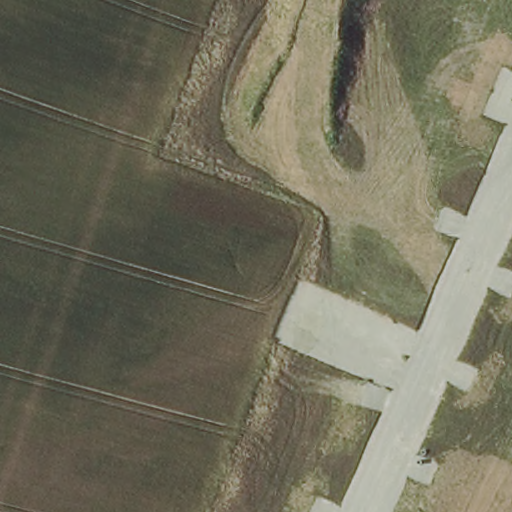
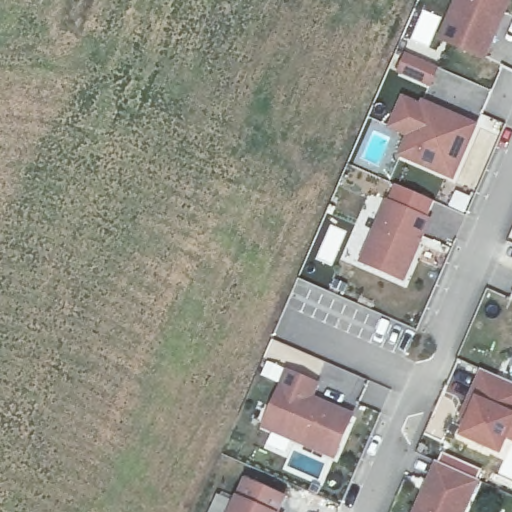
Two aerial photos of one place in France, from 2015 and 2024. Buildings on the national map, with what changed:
new [(491,47),(449,29),(461,0),(511,0),(491,47)]
new [(406,55),(436,69),(429,84),(400,70),(406,55)]
new [(419,103),(422,100),(479,124),(453,182),(397,157),(406,137),(386,130),(401,96),(419,103)]
new [(362,261),(388,202),(396,183),(437,201),(428,219),(402,278),(362,261)]
new [(506,443),(468,427),(476,411),(468,407),(489,362),(512,373),(512,429),(506,443)]
new [(321,377),(316,390),(356,407),(339,448),(269,417),(293,363),(321,377)]
unchanged [(465,512),(418,512),(444,455),(483,472),(465,512)]
new [(282,507),(287,510),(286,512),(236,512),(252,475),(289,490),(282,507)]

